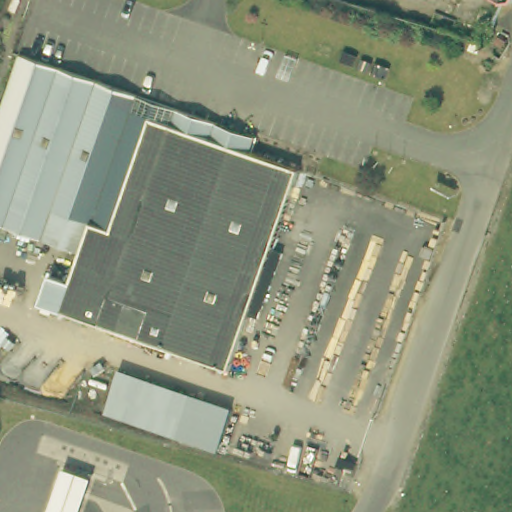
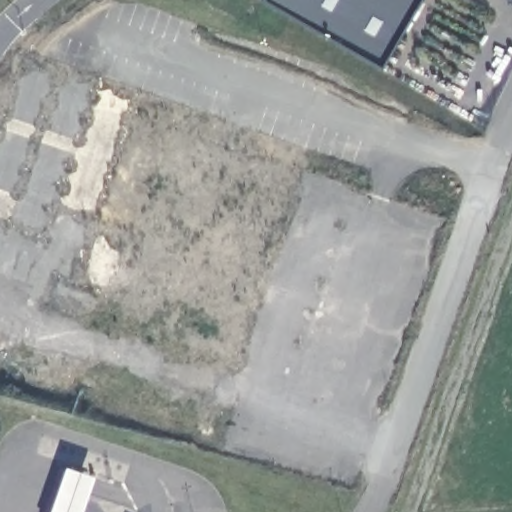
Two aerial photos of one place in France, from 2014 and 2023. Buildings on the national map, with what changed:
unchanged [(263,0),(422,0),(382,69),(263,0)]
demolished [(262,137),(258,153),(306,169),(236,364),(51,303),(60,275),(79,279),(87,251),(0,220),(0,137),(29,56),(262,137)]
demolished [(110,411),(123,370),(243,409),(230,449),(110,411)]
unchanged [(94,479),(82,512),(50,512),(64,469),(94,479)]

